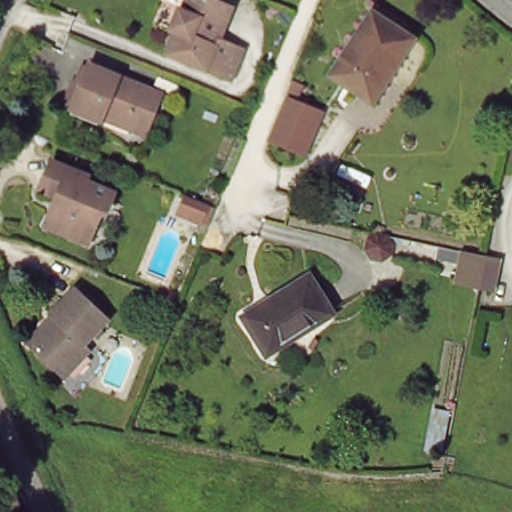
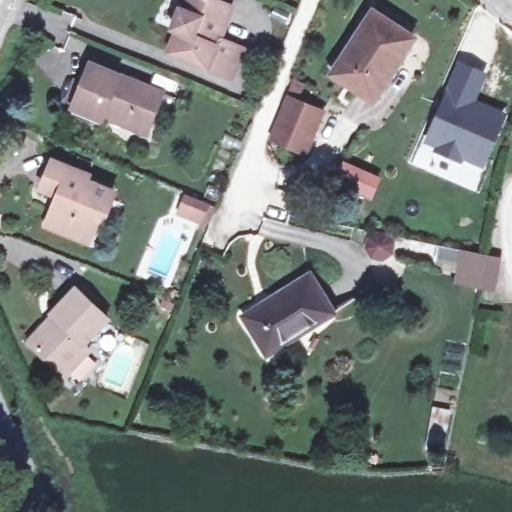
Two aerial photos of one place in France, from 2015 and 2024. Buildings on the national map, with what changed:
unchanged [(230,87),(222,84),(165,60),(175,38),(168,35),(178,16),(181,17),(188,0),(195,0),(230,14),(220,36),(215,46),(235,54),(242,57),(230,87)]
unchanged [(342,80),(326,69),(369,8),(409,34),(375,86),(368,98),(342,80)]
new [(457,56),(488,71),(477,98),(508,112),(484,168),(448,156),(422,143),(457,56)]
unchanged [(102,119),(102,120),(72,108),(91,64),(121,77),(120,80),(136,87),(138,84),(163,95),(148,131),(145,137),(102,119)]
unchanged [(325,114),(307,156),(272,142),(290,100),(325,114)]
new [(342,159),(382,176),(371,200),(332,183),(342,159)]
unchanged [(52,160),(90,176),(88,181),(115,192),(108,211),(103,208),(90,242),(46,225),(55,204),(58,196),(40,189),(52,160)]
unchanged [(184,202),(187,194),(212,204),(203,223),(196,220),(179,213),(184,202)]
unchanged [(381,262),(373,259),(367,249),(368,240),(380,232),(388,234),(395,247),(393,255),(381,262)]
unchanged [(495,288),(482,286),(453,280),(455,273),(460,248),(476,251),(488,254),(502,256),(495,288)]
unchanged [(267,353),(245,317),(310,276),(335,314),(305,333),(303,330),(267,353)]
unchanged [(110,320),(85,344),(91,350),(66,377),(33,346),(26,340),(52,314),(76,288),(110,320)]

